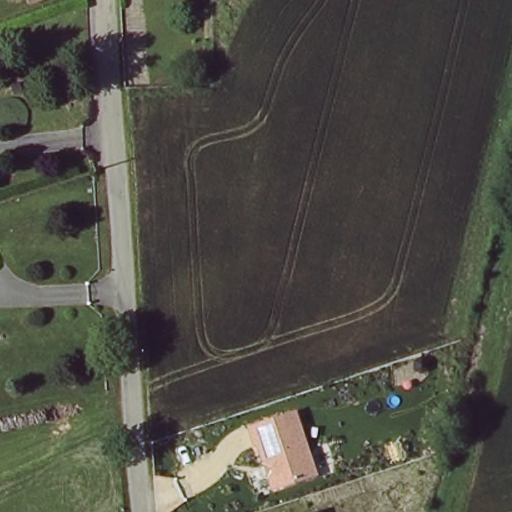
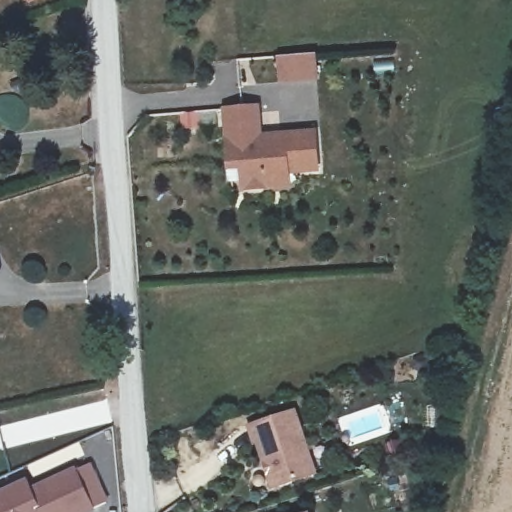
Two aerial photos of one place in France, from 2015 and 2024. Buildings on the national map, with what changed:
unchanged [(21,0),(47,0),(23,6),(21,0)]
new [(259,107),(261,134),(313,131),(316,177),(287,179),(288,191),(237,194),(236,173),(223,173),(219,109),(259,107)]
unchanged [(318,476),(271,489),(251,425),(297,411),(318,476)]
new [(33,488),(76,468),(78,471),(91,464),(110,502),(96,508),(98,512),(96,512),(0,512),(0,491),(27,479),(33,488)]
unchanged [(312,512),(305,512),(311,510),(312,512)]

